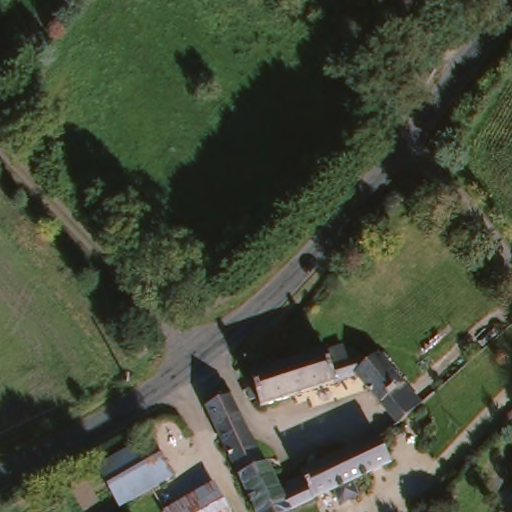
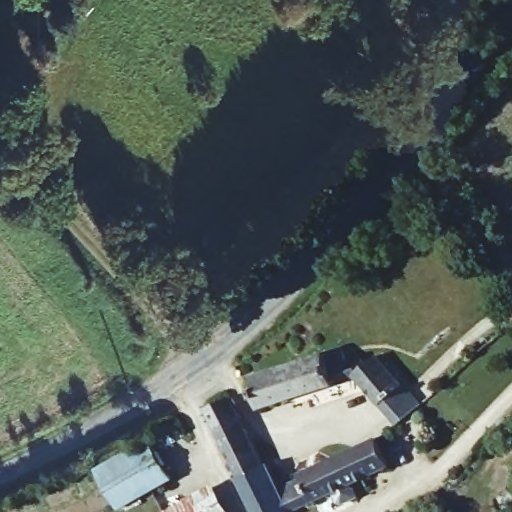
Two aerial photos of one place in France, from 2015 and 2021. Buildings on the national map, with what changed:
unchanged [(404,420),(385,399),(361,371),(266,402),(257,370),(347,341),(366,353),(370,360),(382,350),(408,380),(426,400),(404,420)]
unchanged [(284,512),(262,512),(211,402),(236,391),(269,460),(273,458),(287,487),(295,507),(284,512)]
unchanged [(293,485),(290,481),(308,472),(306,468),(383,432),(395,460),(357,478),(365,492),(347,500),(343,498),(338,487),(295,507),(287,487),(293,485)]
unchanged [(182,473),(159,486),(130,503),(108,463),(160,435),(182,473)]
unchanged [(173,510),(223,482),(241,512),(174,512),(173,510)]

